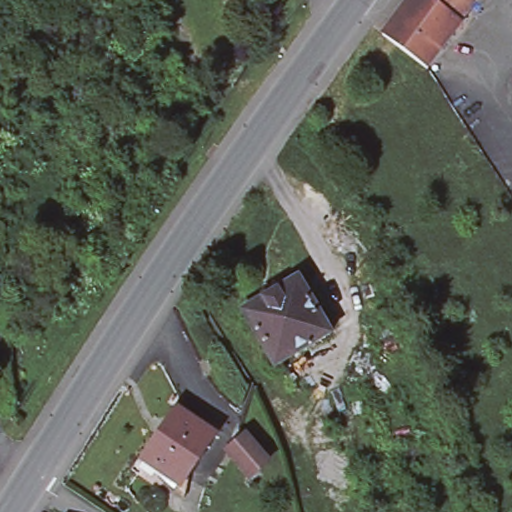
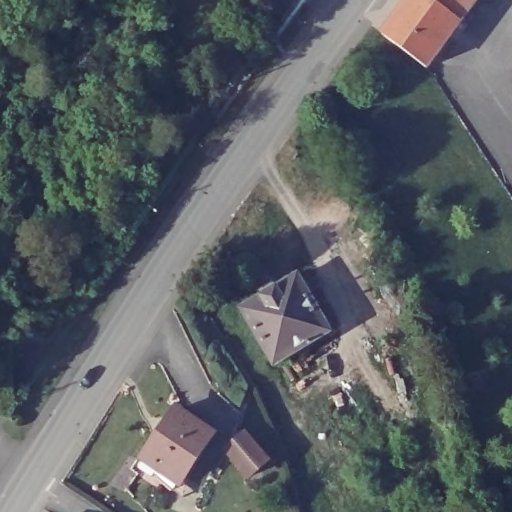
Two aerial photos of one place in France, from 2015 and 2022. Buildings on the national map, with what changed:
unchanged [(426,69),(404,51),(383,34),(409,0),(478,0),(427,67),(426,69)]
unchanged [(299,274),(332,331),(275,364),(242,308),(299,274)]
unchanged [(134,463),(141,452),(173,405),(207,428),(180,469),(185,473),(179,494),(154,471),(157,464),(153,461),(146,471),(134,463)]
unchanged [(246,434),(269,460),(250,476),(227,449),(246,434)]

